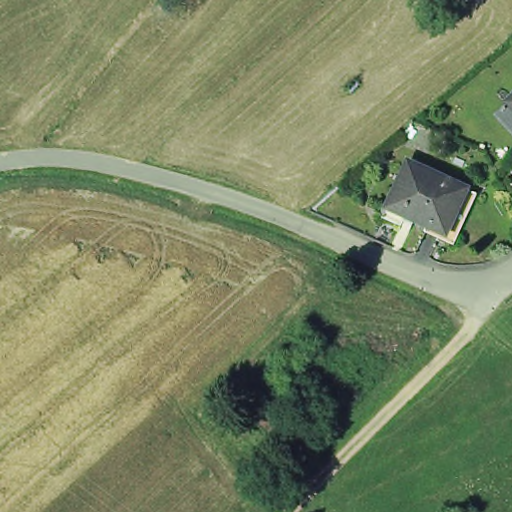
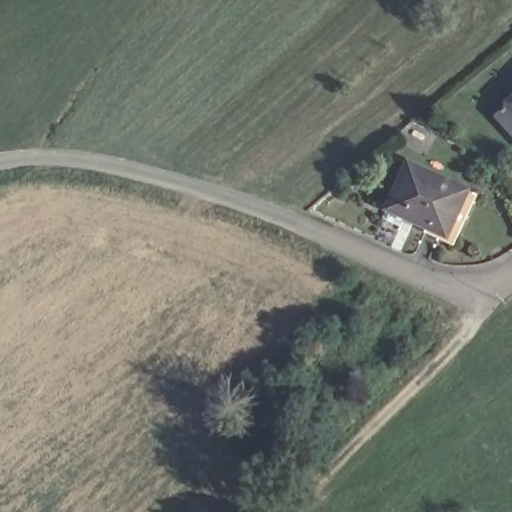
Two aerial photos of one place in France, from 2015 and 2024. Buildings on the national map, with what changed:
unchanged [(492,112),(512,94),(512,133),(492,112)]
unchanged [(408,162),(468,190),(446,236),(387,209),(408,162)]

